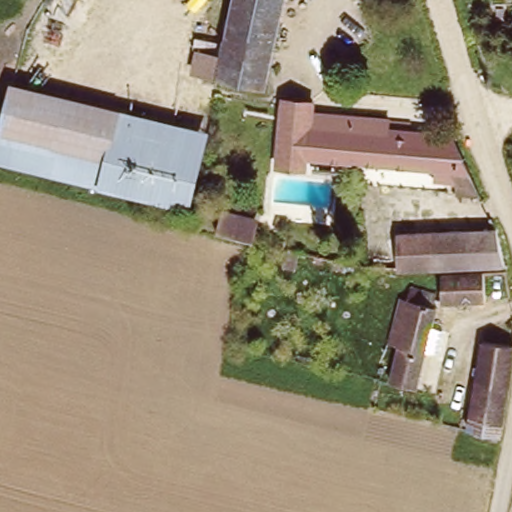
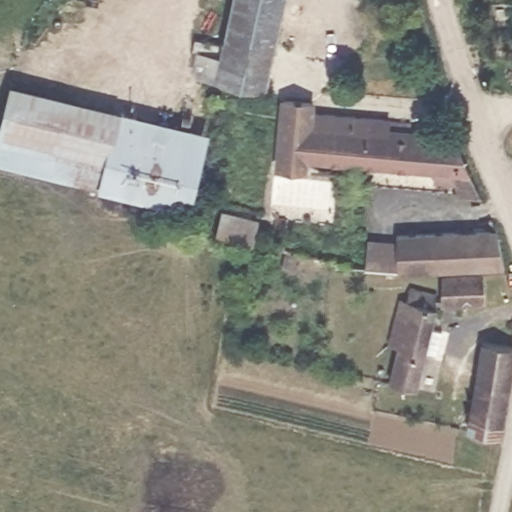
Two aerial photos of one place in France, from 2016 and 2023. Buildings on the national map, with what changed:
unchanged [(198,54),(220,59),(233,0),(289,0),(269,96),(193,80),(198,54)]
unchanged [(0,165),(0,141),(14,93),(202,137),(183,211),(0,165)]
unchanged [(317,172),(317,162),(306,161),(305,173),(278,171),(283,103),(312,104),(312,115),(408,127),(409,133),(451,136),(480,196),(458,197),(446,174),(330,164),(330,172),(317,172)]
unchanged [(402,241),(497,236),(503,274),(408,277),(402,241)]
unchanged [(483,311),(442,313),(441,285),(481,283),(483,311)]
unchanged [(388,389),(396,354),(387,352),(390,337),(396,338),(402,309),(408,310),(411,298),(431,302),(428,315),(433,316),(415,395),(388,389)]
unchanged [(496,437),(491,437),(465,432),(481,346),(510,351),(496,437)]

